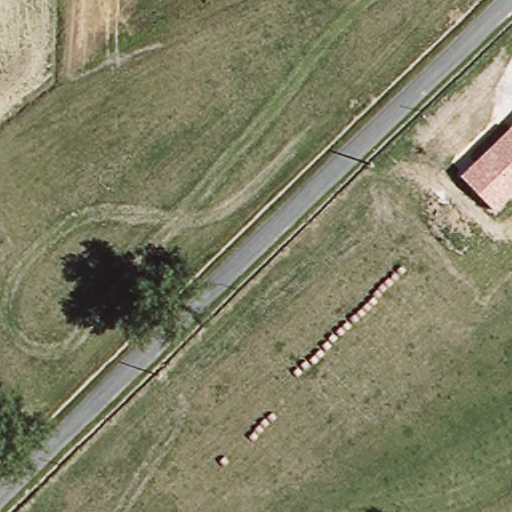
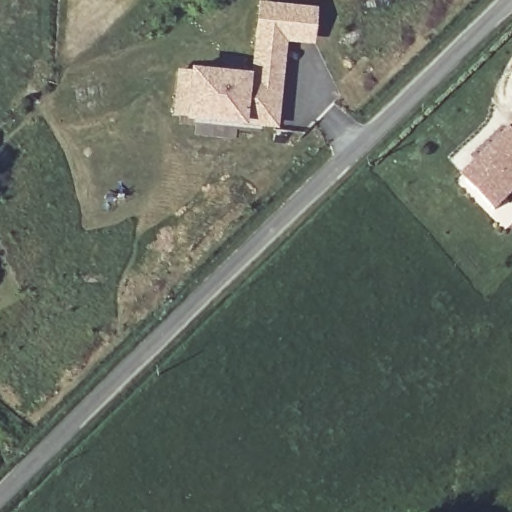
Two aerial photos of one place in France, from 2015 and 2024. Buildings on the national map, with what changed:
new [(175,70),(190,70),(190,68),(249,73),(254,38),(285,42),(277,127),(244,123),(185,119),(185,117),(173,116),(175,70)]
unchanged [(494,210),(460,176),(512,124),(512,194),(494,210)]

